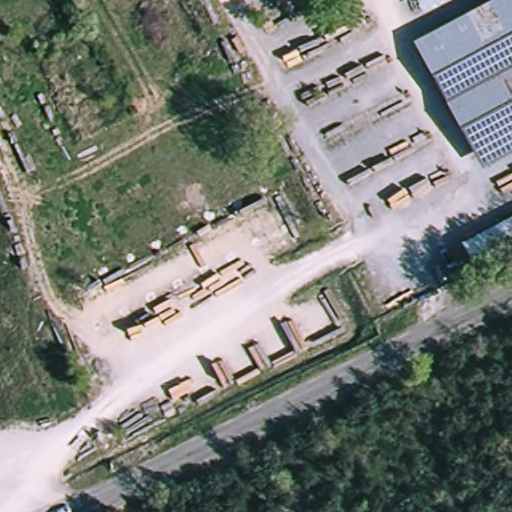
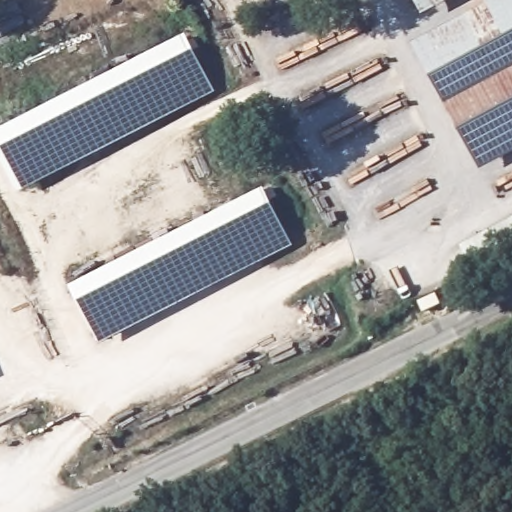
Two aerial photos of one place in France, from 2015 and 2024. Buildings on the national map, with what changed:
new [(412,43),(493,0),(512,0),(459,27),(419,47),(448,105),(412,43)]
new [(422,14),(415,0),(448,0),(422,14)]
unchanged [(459,27),(512,0),(512,73),(488,85),(459,27)]
unchanged [(459,27),(488,85),(448,105),(419,47),(459,27)]
new [(216,92),(18,194),(0,157),(0,131),(184,34),(216,92)]
unchanged [(488,85),(512,73),(512,132),(488,85)]
unchanged [(477,162),(448,105),(488,85),(512,132),(512,144),(477,162)]
new [(70,287),(263,188),(293,245),(99,344),(70,287)]
unchanged [(472,243),(512,223),(512,249),(484,263),(472,243)]

